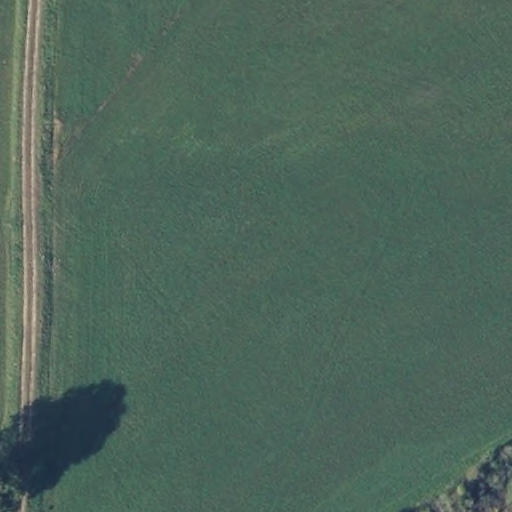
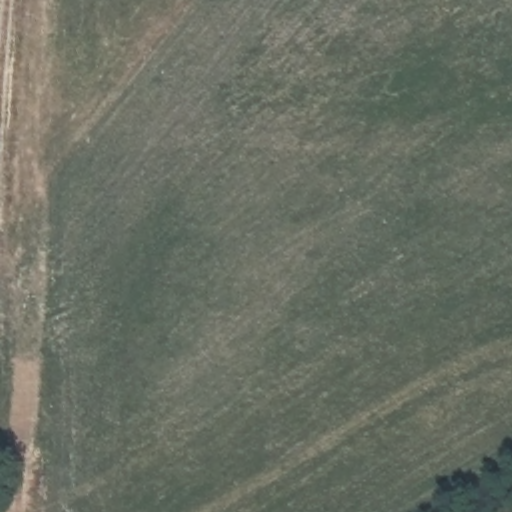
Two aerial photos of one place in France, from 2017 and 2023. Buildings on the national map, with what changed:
[]

